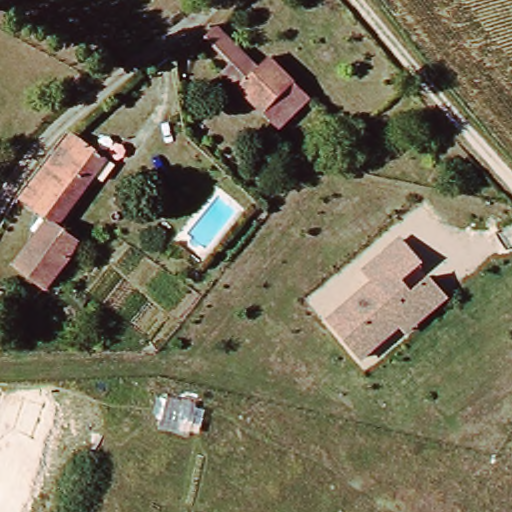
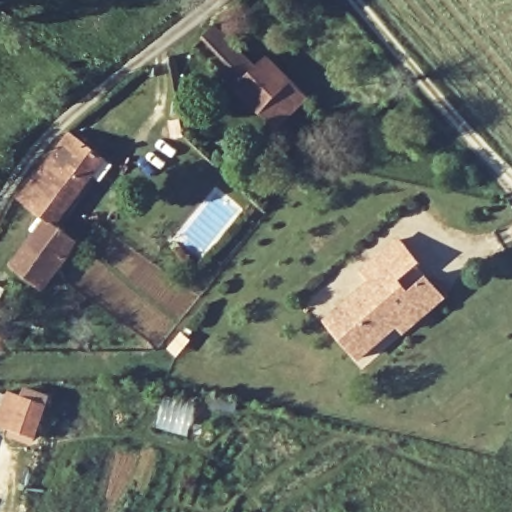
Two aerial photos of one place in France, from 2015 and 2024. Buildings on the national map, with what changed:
unchanged [(271,56),(310,96),(280,126),(225,71),(234,61),(210,36),(220,25),(262,66),(271,56)]
unchanged [(102,176),(94,171),(56,222),(77,239),(65,262),(41,286),(12,264),(45,219),(16,199),(69,131),(112,162),(102,176)]
unchanged [(322,322),(372,281),(364,270),(402,236),(425,263),(405,280),(411,287),(429,273),(451,297),(409,336),(400,328),(362,362),(322,322)]
new [(0,426),(0,418),(9,392),(47,405),(36,436),(0,426)]

